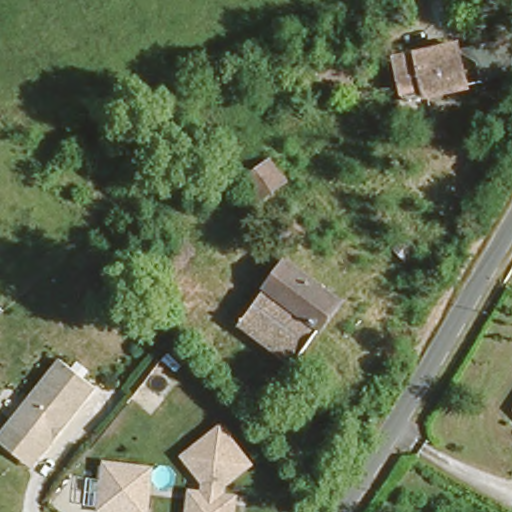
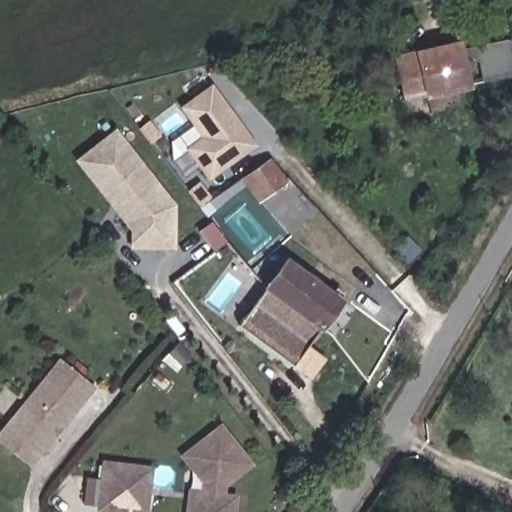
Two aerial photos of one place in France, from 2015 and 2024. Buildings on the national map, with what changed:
unchanged [(481,71),(471,37),(508,26),(512,40),(508,42),(512,51),(512,56),(510,57),(512,61),(492,67),(481,71)]
unchanged [(402,81),(394,57),(428,47),(431,56),(457,48),(466,76),(422,87),(407,92),(402,81)]
new [(212,85),(257,147),(208,182),(184,150),(201,138),(179,108),(212,85)]
new [(116,129),(176,206),(176,251),(131,250),(131,232),(75,162),(116,129)]
unchanged [(241,181),(264,165),(275,155),(292,177),(281,186),(257,203),(241,181)]
demolished [(207,285),(171,240),(190,222),(219,257),(227,268),(207,285)]
unchanged [(242,320),(291,255),(341,291),(294,357),(242,320)]
unchanged [(32,465),(0,443),(0,432),(58,360),(95,390),(32,465)]
unchanged [(226,496),(237,497),(236,512),(185,512),(187,489),(199,492),(199,485),(179,457),(220,424),(254,467),(227,489),(226,496)]
unchanged [(96,512),(101,460),(156,466),(149,512),(96,512)]

